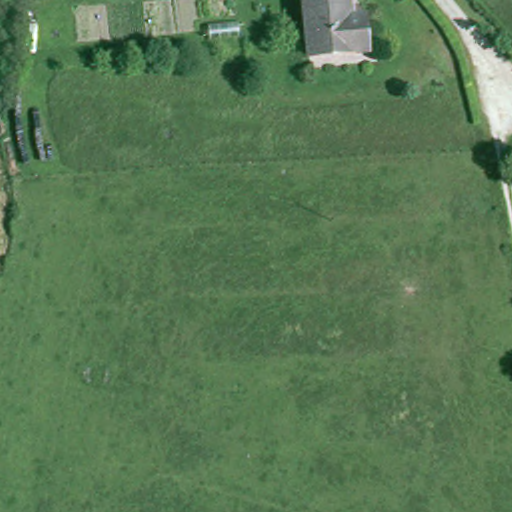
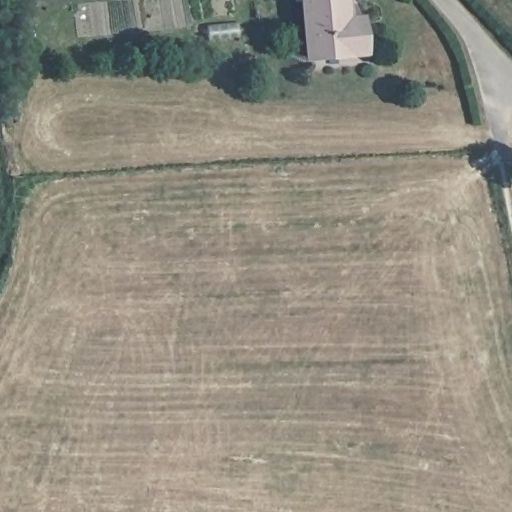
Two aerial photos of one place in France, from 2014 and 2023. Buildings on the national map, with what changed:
unchanged [(345,32),(362,30),(364,54),(304,59),(299,0),(342,0),(345,32)]

